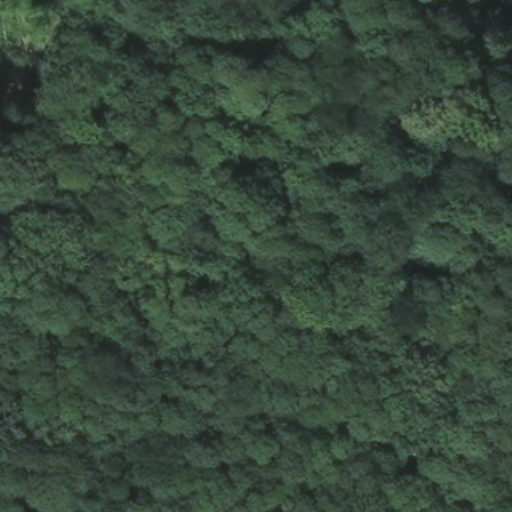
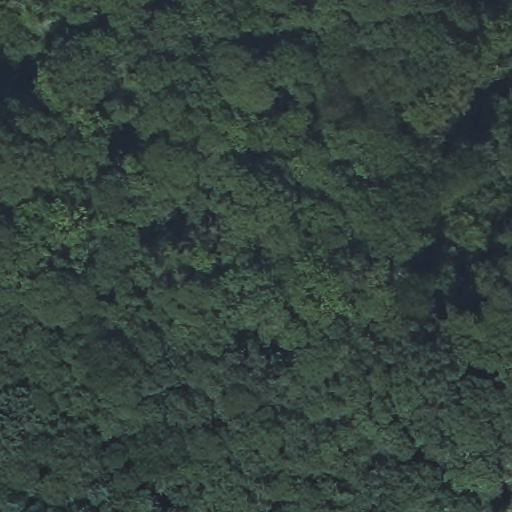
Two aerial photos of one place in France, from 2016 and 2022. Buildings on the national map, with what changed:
[]

